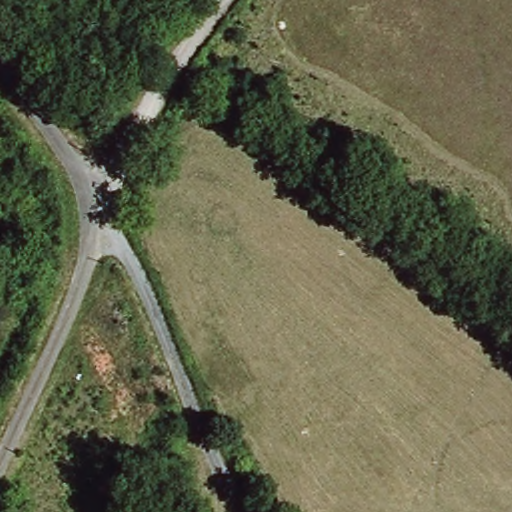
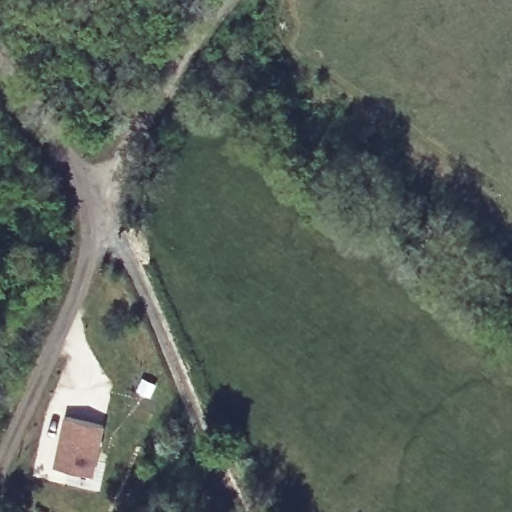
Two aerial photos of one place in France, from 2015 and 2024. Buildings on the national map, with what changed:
new [(65,416),(102,424),(92,475),(53,466),(65,416)]

